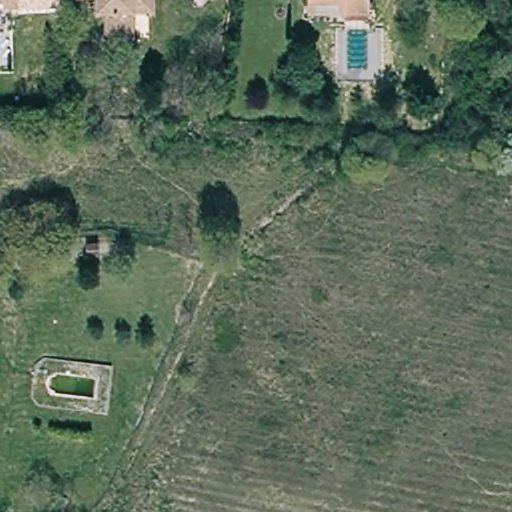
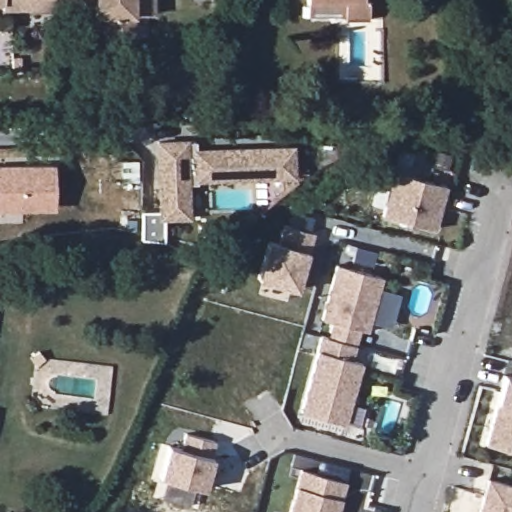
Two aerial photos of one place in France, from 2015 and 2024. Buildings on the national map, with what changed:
new [(3,11),(3,4),(0,4),(0,0),(58,0),(58,9),(3,11)]
demolished [(5,7),(4,0),(18,0),(18,5),(5,7)]
unchanged [(79,0),(90,0),(79,1),(79,0)]
unchanged [(97,16),(96,0),(159,0),(160,14),(137,15),(138,41),(110,43),(107,16),(97,16)]
demolished [(290,14),(289,0),(310,0),(311,14),(290,14)]
new [(345,19),(345,15),(308,15),(308,0),(367,0),(367,19),(345,19)]
new [(155,143),(198,141),(198,151),(293,150),(293,178),(198,179),(198,184),(186,186),(186,219),(157,219),(157,179),(155,143)]
new [(56,208),(0,210),(0,167),(55,166),(56,208)]
new [(435,229),(382,215),(392,171),(447,185),(435,229)]
new [(267,240),(277,241),(283,224),(314,233),(308,250),(297,291),(256,279),(267,240)]
new [(332,322),(322,320),(335,264),(383,276),(368,332),(359,330),(355,344),(328,337),(332,322)]
new [(300,413),(320,335),(328,337),(355,344),(352,360),(362,362),(345,425),(300,413)]
new [(485,443),(495,403),(502,373),(512,376),(512,450),(485,443)]
new [(177,447),(184,432),(216,440),(210,456),(213,457),(205,490),(158,478),(167,445),(177,447)]
new [(301,469),(347,481),(339,512),(289,512),(301,469)]
new [(487,478),(512,484),(512,512),(479,512),(487,478)]

